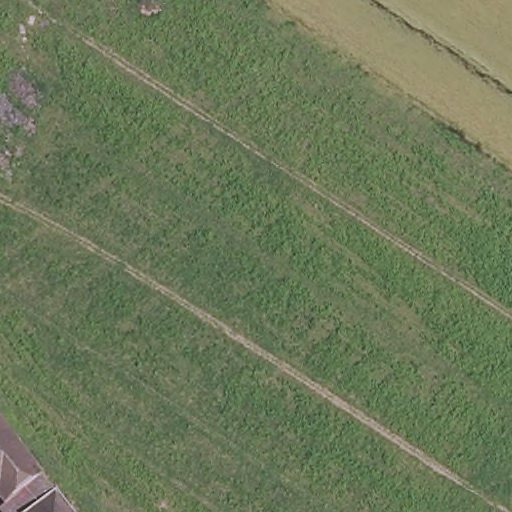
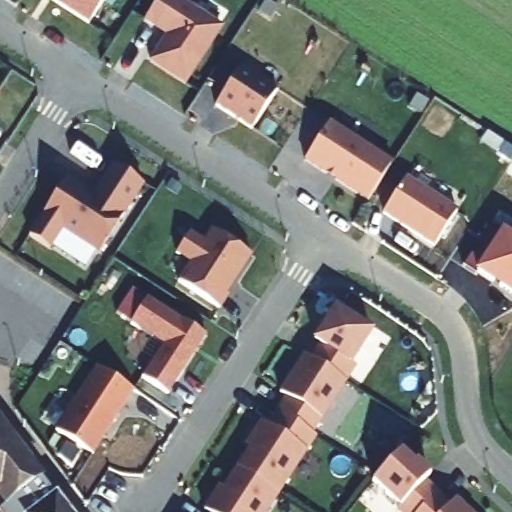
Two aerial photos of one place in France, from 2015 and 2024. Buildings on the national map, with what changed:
new [(57,0),(102,0),(88,22),(57,0)]
new [(151,58),(170,31),(161,24),(157,30),(145,21),(159,0),(179,0),(221,28),(183,81),(151,58)]
new [(278,89),(251,127),(215,104),(243,66),(278,89)]
new [(391,161),(365,200),(305,159),(330,121),(391,161)]
new [(500,143),(512,151),(512,159),(508,165),(492,155),(500,143)]
new [(141,184),(98,253),(61,232),(49,250),(28,234),(67,176),(93,193),(110,165),(141,184)]
new [(384,211),(407,176),(456,207),(435,245),(384,211)]
new [(177,281),(190,262),(175,252),(188,232),(203,242),(211,229),(250,255),(224,294),(226,295),(218,307),(177,281)]
new [(475,274),(462,267),(487,229),(498,237),(502,231),(512,238),(512,297),(475,274)]
new [(166,394),(140,377),(161,344),(128,322),(145,296),(205,335),(166,394)]
new [(203,508),(217,485),(220,488),(250,448),(243,442),(260,420),(265,426),(285,395),(280,390),(303,354),(308,358),(316,342),(312,338),(333,304),(373,329),(351,363),(355,366),(311,433),(315,435),(264,512),(209,512),(210,511),(203,508)]
new [(56,428),(96,365),(131,388),(92,453),(56,428)]
unchanged [(22,445),(37,465),(45,476),(72,512),(4,512),(0,507),(8,502),(0,491),(0,416),(2,419),(22,445)]
new [(398,507),(371,482),(402,451),(415,462),(417,459),(430,471),(422,477),(451,503),(456,499),(472,512),(396,512),(395,511),(398,507)]

